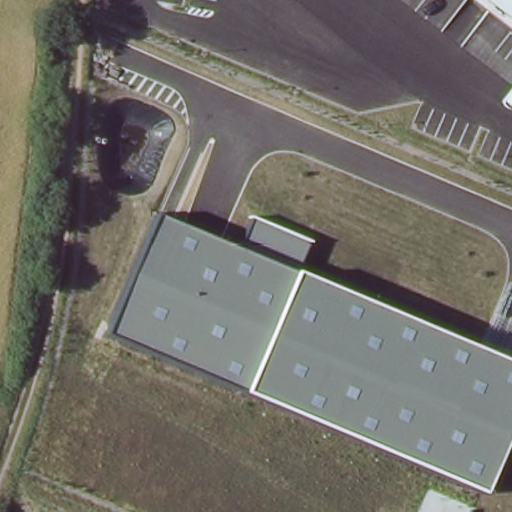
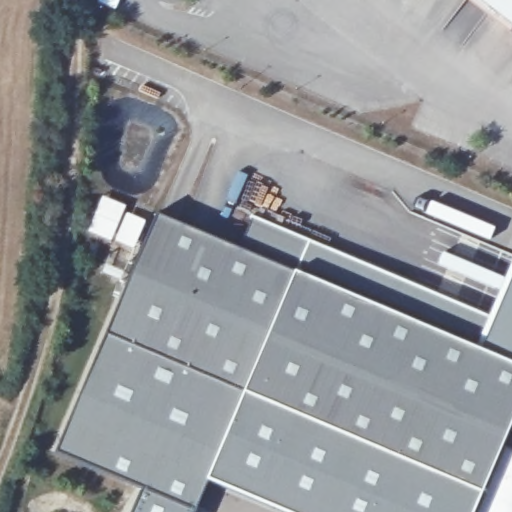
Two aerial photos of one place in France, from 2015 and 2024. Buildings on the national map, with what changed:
unchanged [(507,33),(465,0),(512,0),(512,27),(512,26),(507,33)]
unchanged [(244,393),(106,335),(159,216),(238,250),(253,218),(308,243),(295,274),(484,353),(512,365),(512,422),(482,494),(244,393)]
new [(495,320),(480,352),(295,274),(308,243),(495,320)]
new [(244,393),(482,494),(474,512),(282,512),(205,480),(193,512),(55,452),(106,335),(244,393)]
new [(482,494),(501,448),(512,452),(512,512),(474,512),(482,494)]
new [(143,490),(193,512),(133,512),(143,490)]

